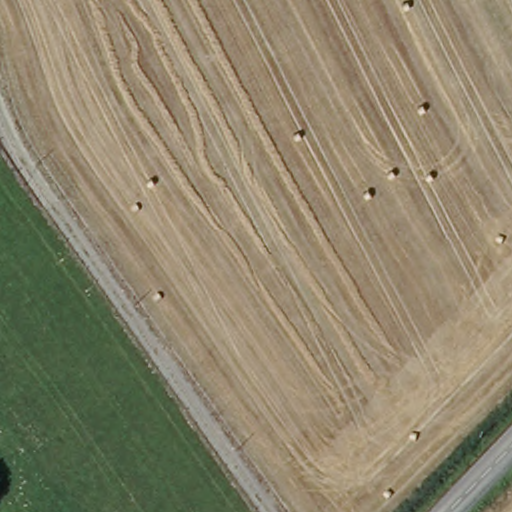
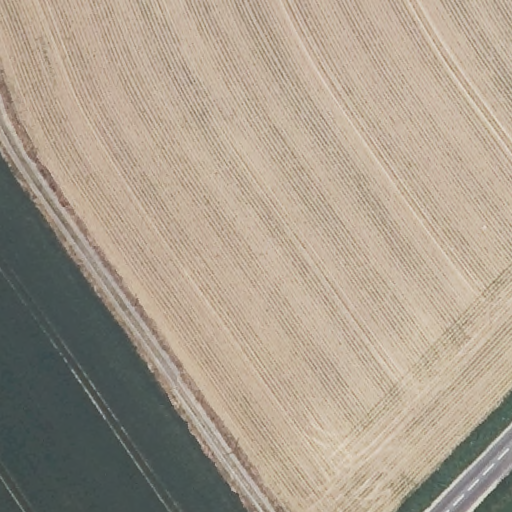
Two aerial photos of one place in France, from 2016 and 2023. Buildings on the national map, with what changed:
[]

